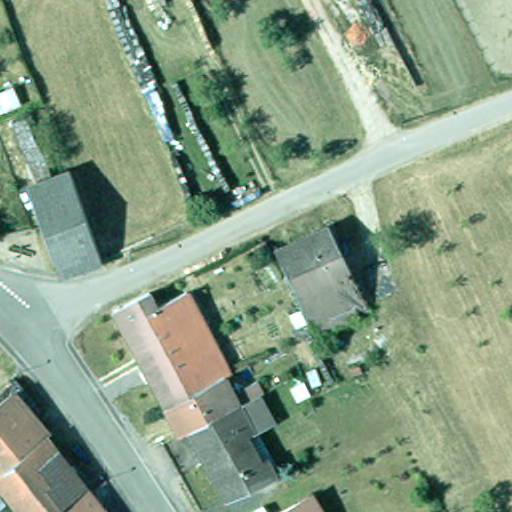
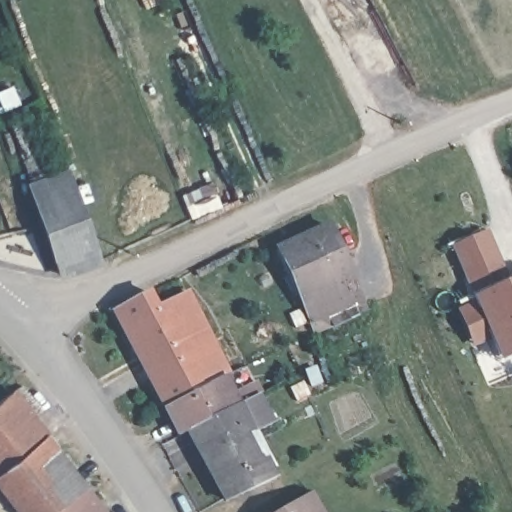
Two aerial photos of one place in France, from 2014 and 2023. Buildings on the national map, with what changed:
unchanged [(97,257),(56,271),(25,180),(65,167),(97,257)]
unchanged [(323,222),(342,258),(352,253),(372,300),(361,307),(350,314),(337,320),(329,324),(328,323),(309,330),(309,329),(270,247),(323,222)]
new [(509,280),(512,279),(512,356),(501,362),(492,340),(475,347),(459,310),(475,302),(450,248),(486,232),(509,280)]
unchanged [(218,349),(230,372),(170,404),(118,306),(155,288),(162,302),(191,288),(222,347),(218,349)]
unchanged [(239,389),(260,378),(267,389),(264,392),(244,401),(244,402),(192,426),(193,427),(185,431),(170,404),(230,372),(239,389)]
unchanged [(46,433),(7,463),(5,466),(0,469),(0,399),(12,389),(47,432),(46,433)]
unchanged [(277,417),(260,426),(280,462),(282,474),(232,497),(193,427),(192,426),(244,402),(244,401),(264,392),(277,417)]
unchanged [(89,479),(84,483),(107,512),(22,512),(0,483),(0,469),(5,466),(7,463),(46,433),(75,471),(80,467),(89,479)]
unchanged [(300,504),(312,497),(320,512),(286,512),(300,504)]

